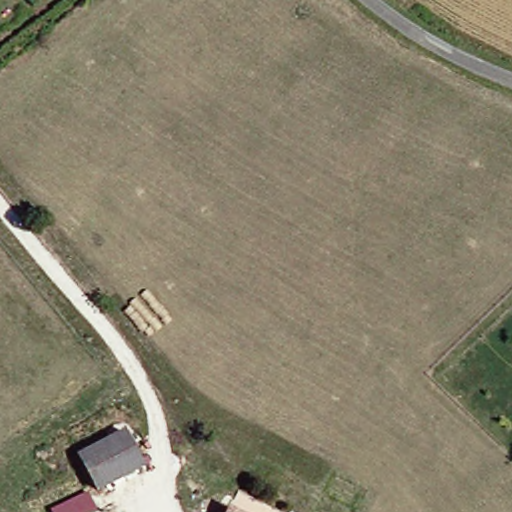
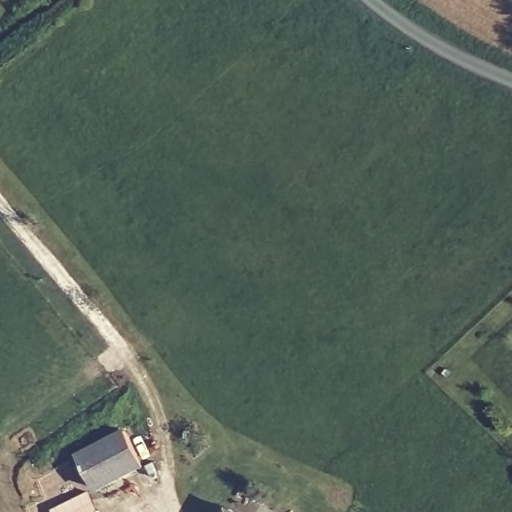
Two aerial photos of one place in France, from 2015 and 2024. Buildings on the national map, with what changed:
unchanged [(80,458),(117,437),(121,434),(144,467),(102,490),(89,471),(80,458)]
unchanged [(90,488),(101,512),(53,512),(50,507),(90,488)]
unchanged [(242,512),(231,512),(233,507),(242,512)]

